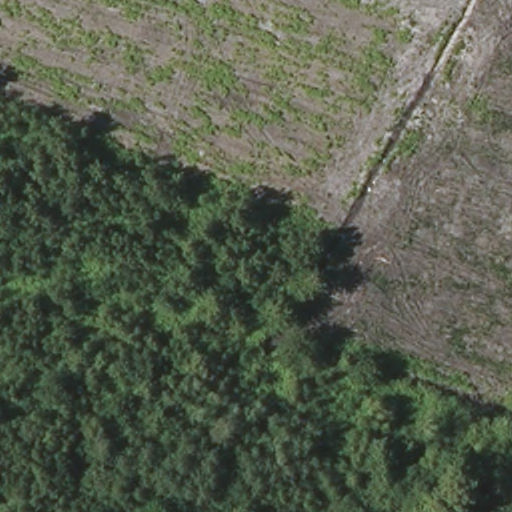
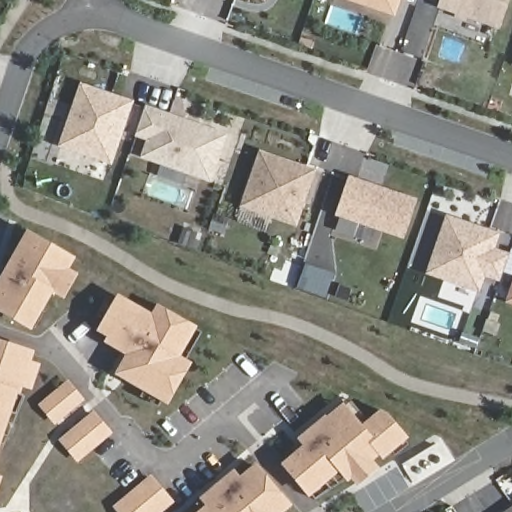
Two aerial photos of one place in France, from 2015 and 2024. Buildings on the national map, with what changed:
new [(265,1),(262,0),(265,0),(265,1)]
new [(345,0),(401,0),(395,16),(345,0)]
new [(439,0),(509,0),(498,30),(437,7),(439,0)]
new [(83,86),(131,104),(110,163),(62,145),(83,86)]
new [(139,157),(145,140),(134,136),(146,105),(227,134),(211,182),(139,157)]
new [(240,206),(259,150),(316,169),(296,226),(240,206)]
new [(335,216),(349,176),(417,199),(402,239),(335,216)]
new [(425,274),(445,215),(500,232),(494,250),(508,254),(499,281),(485,276),(479,292),(425,274)]
new [(77,252),(70,269),(80,273),(67,302),(56,295),(34,333),(0,312),(0,286),(29,232),(77,252)]
new [(512,280),(512,304),(504,302),(512,280)]
new [(156,315),(161,306),(200,326),(187,358),(196,365),(173,406),(117,376),(130,355),(108,344),(110,337),(102,333),(120,296),(156,315)]
new [(39,350),(35,362),(43,363),(36,395),(22,390),(0,465),(0,340),(39,350)]
new [(70,380),(87,400),(55,426),(39,405),(70,380)]
new [(349,403),(370,426),(387,411),(412,436),(353,486),(339,473),(310,499),(285,469),(309,448),(301,443),(349,403)]
new [(94,408),(115,435),(79,466),(58,440),(94,408)]
new [(202,499),(236,469),(244,477),(258,465),(295,507),(289,512),(203,512),(207,508),(202,499)]
new [(175,507),(169,512),(117,512),(112,508),(151,473),(175,507)]
new [(7,479),(0,498),(0,477),(7,479)]
new [(512,512),(502,512),(512,505),(512,512)]

